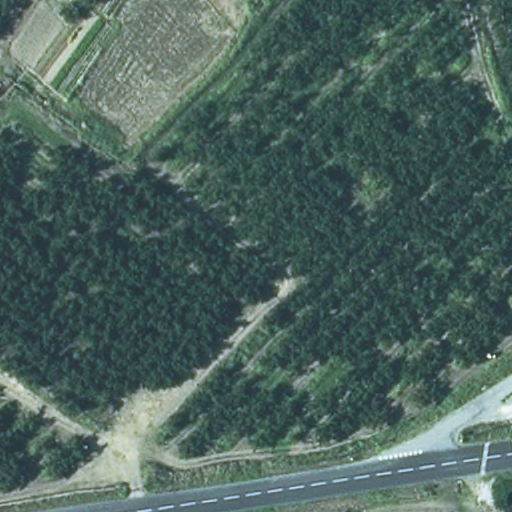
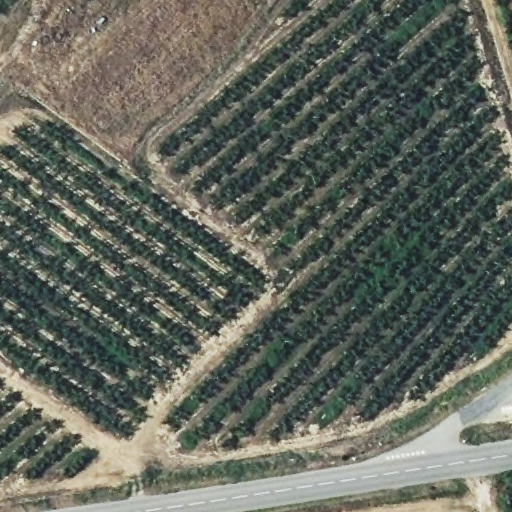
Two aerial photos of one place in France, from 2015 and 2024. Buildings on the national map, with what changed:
[]

